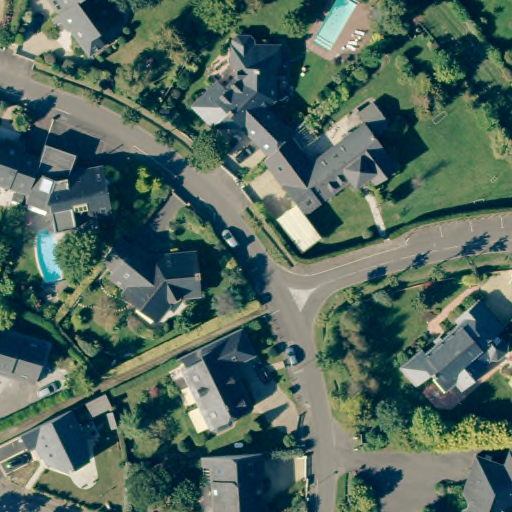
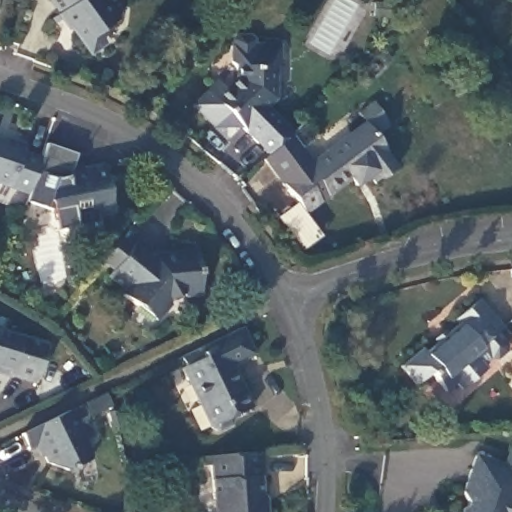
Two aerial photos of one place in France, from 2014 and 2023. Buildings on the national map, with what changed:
unchanged [(97,0),(114,22),(90,40),(96,49),(88,55),(65,21),(49,1),(50,0),(97,0)]
unchanged [(225,82),(232,90),(241,83),(242,66),(237,61),(238,44),(240,44),(240,39),(244,35),(256,35),(259,40),(259,45),(286,46),(286,64),(282,64),(280,101),(272,109),(295,134),(293,136),(275,154),(273,155),(272,156),(241,123),(233,122),(229,125),(218,128),(198,106),(225,82)]
unchanged [(380,140),(363,116),(376,107),(393,131),(380,140)]
unchanged [(323,204),(309,216),(287,185),(268,160),(272,156),(273,155),(275,154),(293,136),(314,165),(367,125),(400,169),(377,186),(373,181),(366,186),(359,179),(332,198),(325,187),(316,194),(323,204)]
unchanged [(0,137),(23,145),(21,151),(36,156),(28,178),(24,191),(0,183),(0,137)]
unchanged [(74,152),(71,159),(99,170),(99,167),(104,167),(103,179),(113,185),(108,194),(109,210),(97,217),(96,226),(90,233),(83,233),(65,239),(61,215),(51,214),(49,204),(23,195),(24,191),(28,178),(36,156),(41,141),(74,152)]
unchanged [(96,260),(106,248),(120,260),(131,246),(146,257),(195,254),(198,296),(181,298),(177,294),(168,297),(168,306),(158,318),(139,303),(135,308),(117,293),(121,288),(106,276),(110,272),(96,260)]
unchanged [(424,350),(459,320),(456,316),(479,297),(501,323),(473,350),(483,363),(459,385),(454,379),(444,387),(428,368),(415,379),(400,361),(419,345),(424,350)]
unchanged [(225,370),(231,381),(235,380),(249,410),(233,417),(229,428),(216,435),(208,430),(181,373),(176,362),(216,344),(220,342),(241,331),(253,356),(225,370)]
unchanged [(33,381),(6,373),(6,377),(0,375),(0,332),(44,345),(33,381)]
unchanged [(85,440),(87,457),(65,468),(43,458),(37,445),(29,449),(20,430),(70,407),(85,440)]
unchanged [(262,480),(259,480),(260,510),(267,510),(267,512),(214,512),(214,510),(208,510),(207,482),(199,482),(197,458),(261,453),(262,480)]
unchanged [(465,501),(460,491),(473,455),(512,468),(512,512),(461,512),(465,501)]

